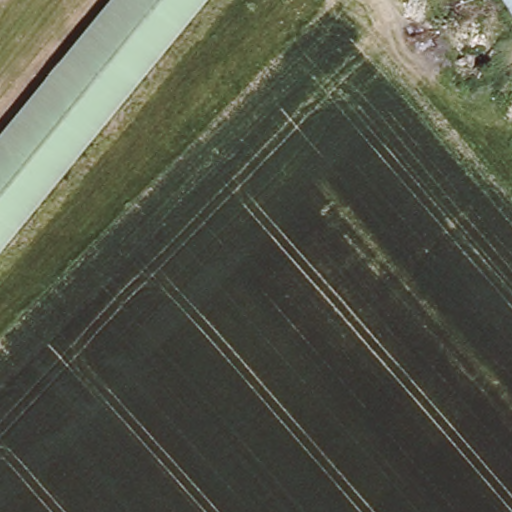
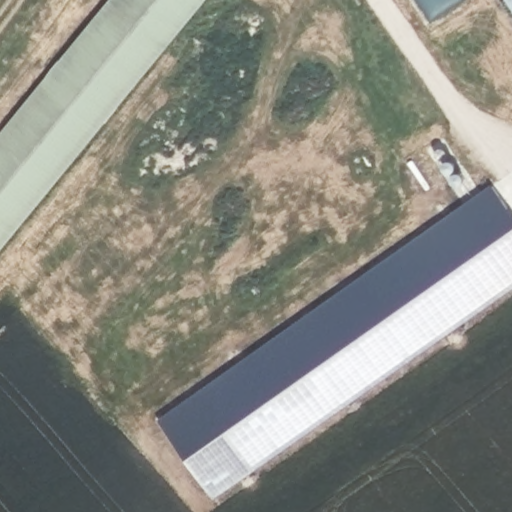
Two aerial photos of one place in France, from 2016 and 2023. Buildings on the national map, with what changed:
unchanged [(0,235),(0,139),(114,0),(194,0),(0,235)]
unchanged [(509,0),(512,0),(512,4),(509,0)]
new [(491,184),(512,213),(512,289),(213,499),(158,420),(491,184)]

